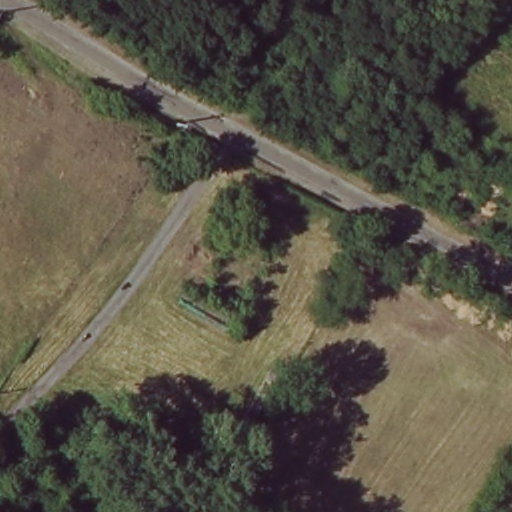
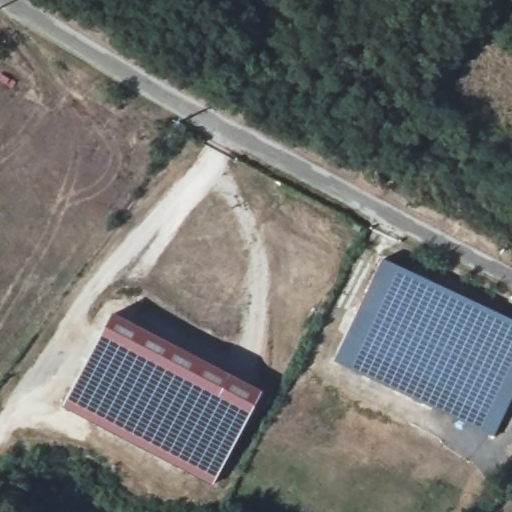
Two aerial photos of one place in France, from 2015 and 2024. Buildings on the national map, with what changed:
new [(512,321),(512,401),(495,437),(334,363),(382,259),(512,321)]
new [(262,393),(213,486),(63,409),(111,314),(262,393)]

